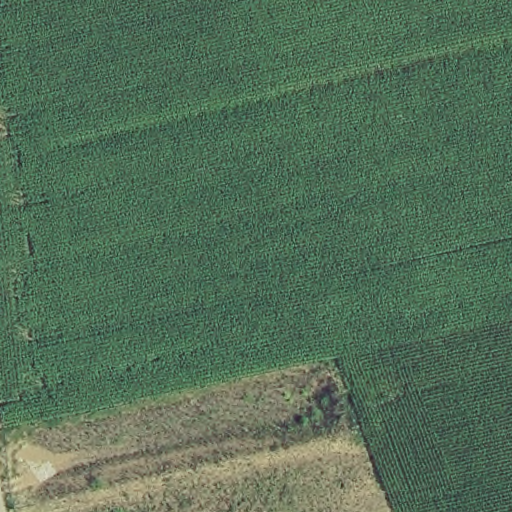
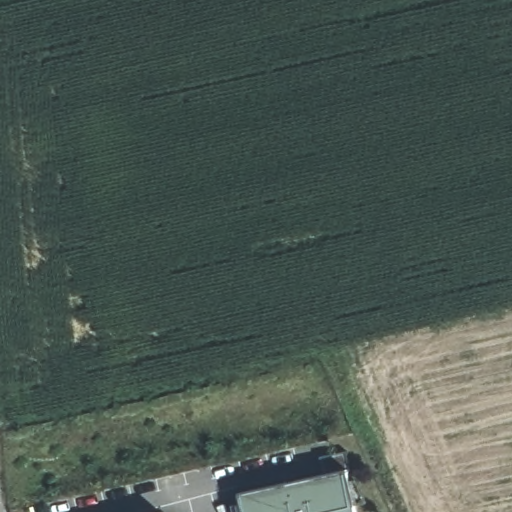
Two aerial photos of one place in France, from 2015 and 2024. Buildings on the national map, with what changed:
new [(324,473),(320,455),(347,450),(352,470),(349,470),(357,505),(355,505),(357,512),(245,512),(240,492),(324,473)]

